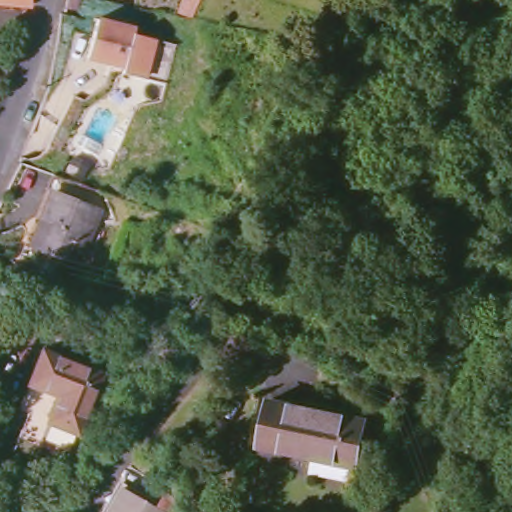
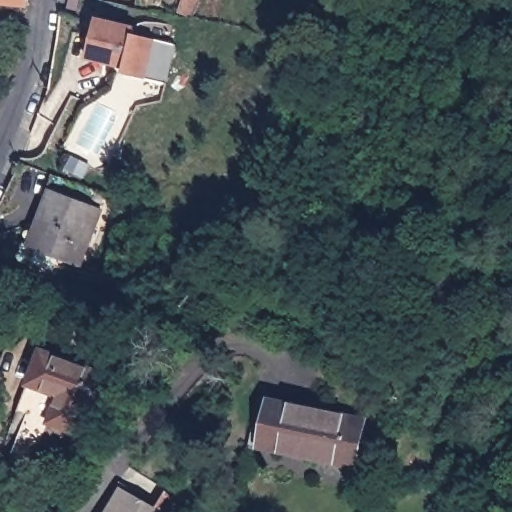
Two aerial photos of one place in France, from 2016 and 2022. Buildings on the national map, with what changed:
unchanged [(0,3),(0,0),(26,0),(26,6),(0,3)]
unchanged [(64,0),(76,0),(74,9),(62,6),(64,0)]
unchanged [(119,0),(136,0),(135,4),(119,0)]
unchanged [(183,0),(200,0),(192,16),(179,13),(183,0)]
unchanged [(134,28),(132,33),(175,44),(165,84),(122,73),(123,65),(85,56),(95,19),(134,28)]
unchanged [(29,246),(50,190),(99,209),(78,264),(29,246)]
unchanged [(43,354),(104,379),(80,439),(50,427),(60,401),(30,389),(35,376),(43,354)]
unchanged [(365,420),(356,466),(260,447),(269,400),(307,408),(365,420)]
unchanged [(123,490),(161,512),(110,512),(123,490)]

